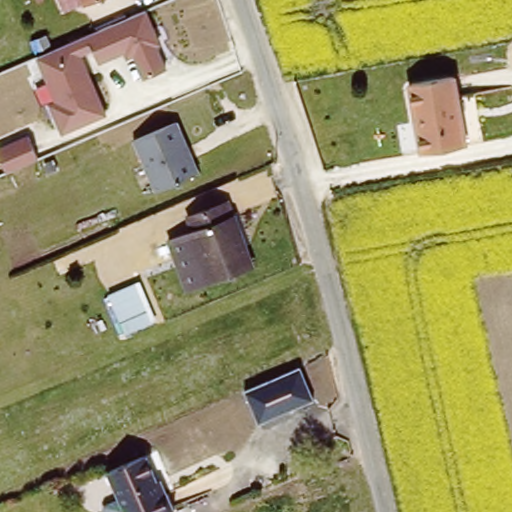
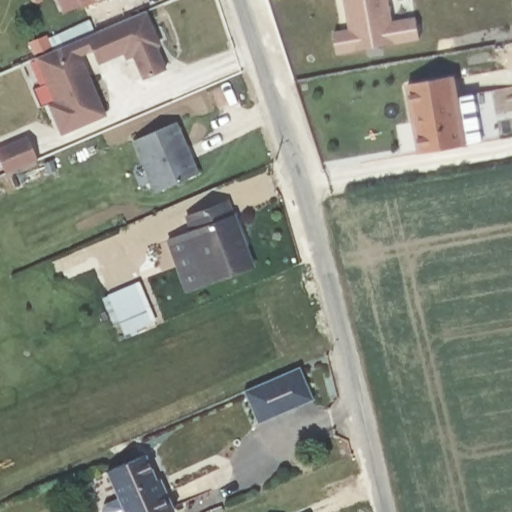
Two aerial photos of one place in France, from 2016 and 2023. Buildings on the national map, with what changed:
unchanged [(82,7),(64,12),(58,0),(79,0),(82,7)]
unchanged [(82,7),(79,0),(98,0),(82,7)]
new [(350,30),(345,0),(389,0),(394,23),(416,19),(420,40),(337,54),(333,34),(350,30)]
unchanged [(46,35),(54,48),(147,9),(160,44),(156,45),(166,69),(143,79),(133,56),(125,58),(124,52),(97,65),(92,51),(82,55),(105,115),(61,134),(50,102),(54,100),(37,56),(31,41),(46,35)]
unchanged [(417,118),(412,81),(455,74),(467,142),(428,149),(422,150),(417,118)]
unchanged [(177,120),(199,172),(154,191),(131,140),(177,120)]
unchanged [(0,160),(0,147),(29,135),(39,160),(5,175),(0,160)]
unchanged [(194,233),(185,214),(222,199),(250,265),(180,295),(164,244),(194,233)]
unchanged [(138,281),(155,321),(122,336),(106,295),(138,281)]
unchanged [(315,400),(258,424),(245,390),(300,366),(315,400)]
unchanged [(140,457),(162,512),(125,512),(107,472),(140,457)]

